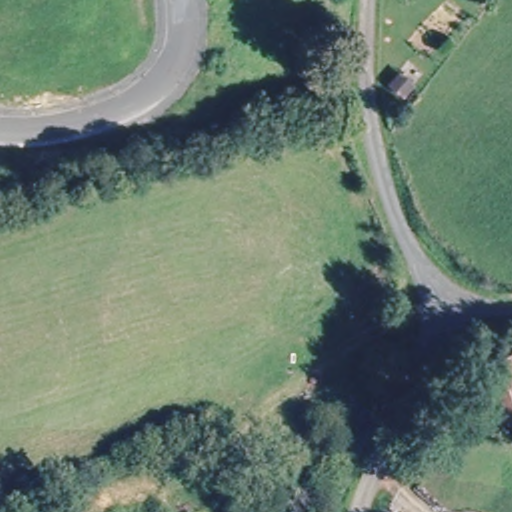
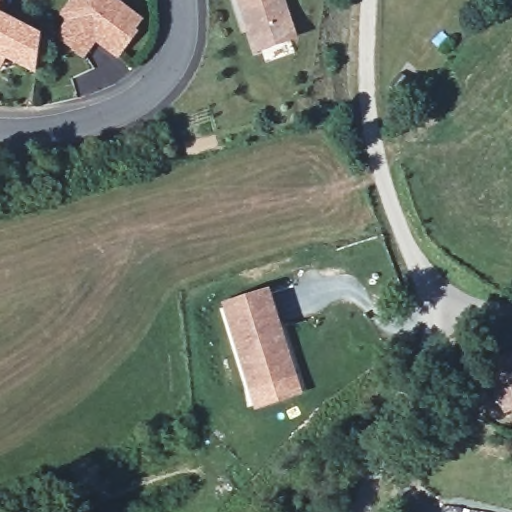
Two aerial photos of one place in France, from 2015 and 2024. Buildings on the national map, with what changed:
new [(136,28),(140,30),(118,59),(95,42),(84,59),(54,36),(66,20),(59,14),(69,0),(118,0),(143,19),(136,28)]
new [(286,0),(298,39),(254,53),(237,0),(286,0)]
new [(40,33),(35,75),(4,60),(0,68),(0,12),(40,33)]
new [(220,302),(270,287),(297,377),(249,392),(220,302)]
unchanged [(487,372),(510,362),(512,365),(512,408),(503,411),(487,372)]

